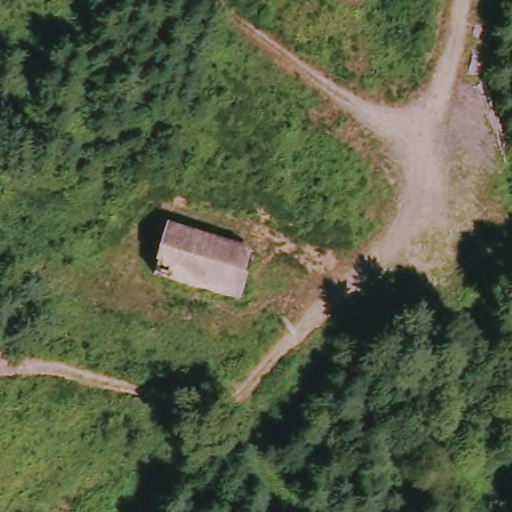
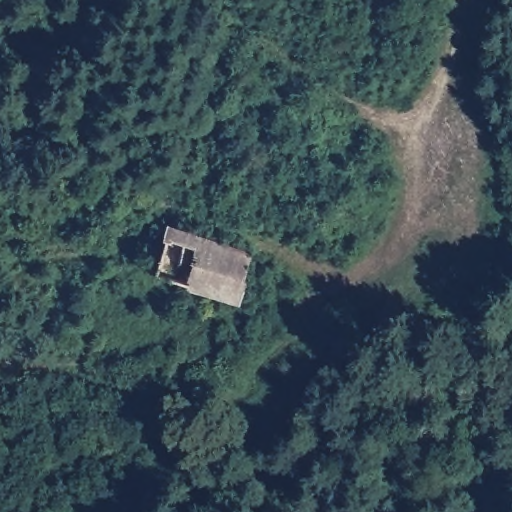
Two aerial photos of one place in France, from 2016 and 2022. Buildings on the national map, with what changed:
unchanged [(163,227),(244,252),(228,300),(149,275),(163,227)]

